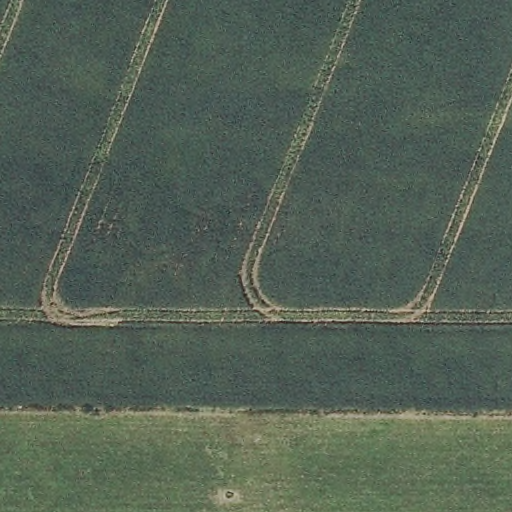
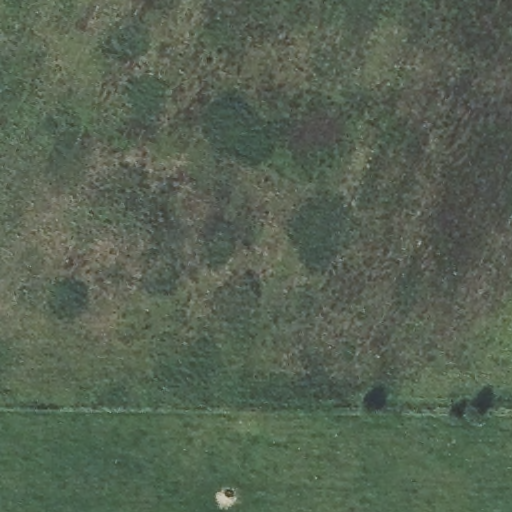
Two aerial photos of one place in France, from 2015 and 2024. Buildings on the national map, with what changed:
[]

